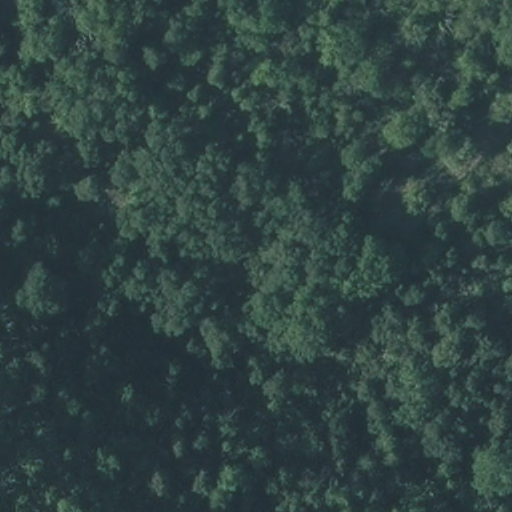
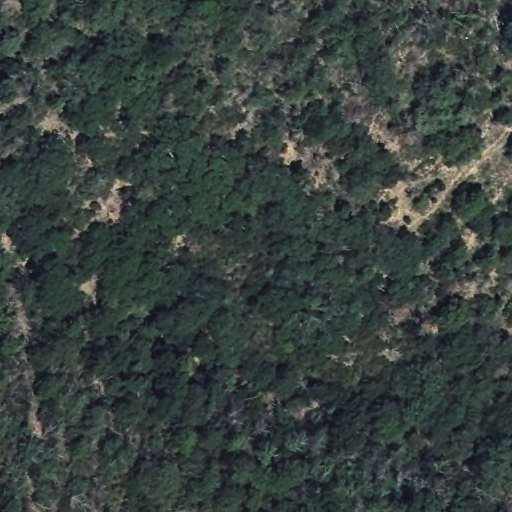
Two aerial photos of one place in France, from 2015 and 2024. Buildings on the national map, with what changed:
[]

